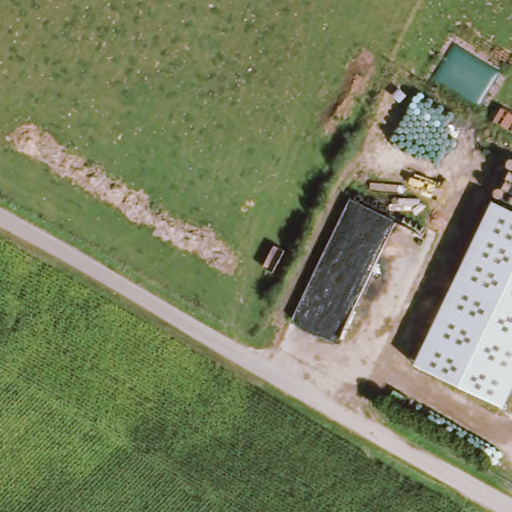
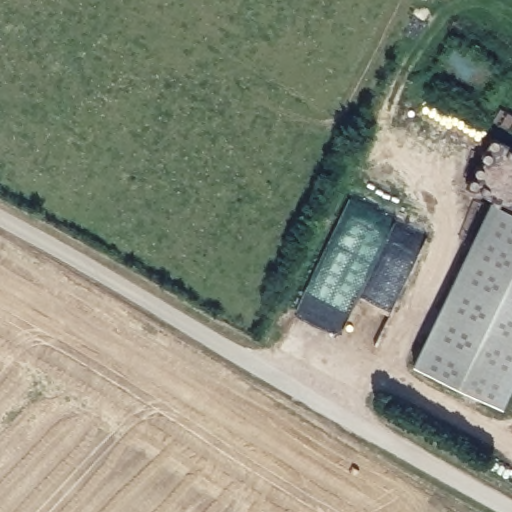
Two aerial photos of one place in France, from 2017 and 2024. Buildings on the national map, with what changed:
unchanged [(512,211),(512,392),(505,407),(416,365),(493,202),(512,211)]

